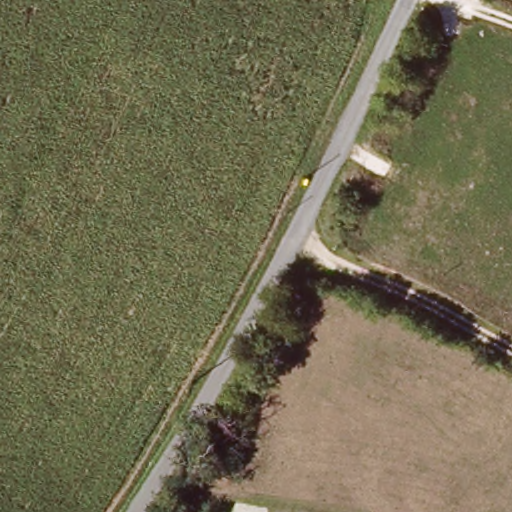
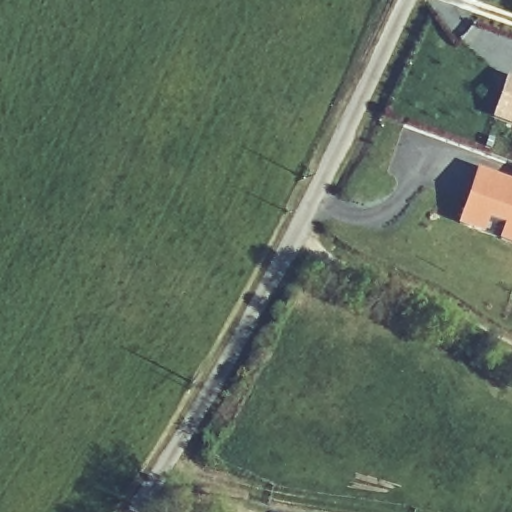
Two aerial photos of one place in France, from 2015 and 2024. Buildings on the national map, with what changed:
new [(491,119),(506,77),(512,79),(512,126),(491,119)]
new [(512,183),(512,243),(500,239),(506,224),(487,217),(483,231),(460,224),(478,171),(512,183)]

